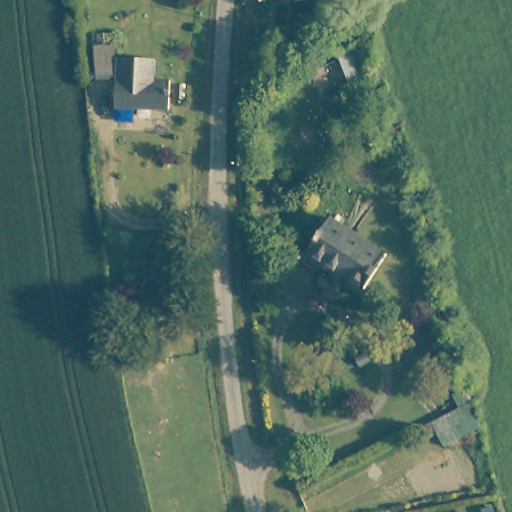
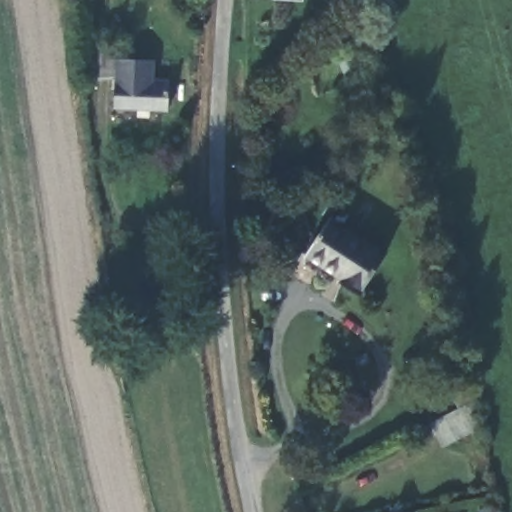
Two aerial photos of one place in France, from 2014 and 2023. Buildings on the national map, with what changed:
unchanged [(369,81),(350,89),(334,50),(354,43),(369,81)]
unchanged [(153,59),(154,79),(167,80),(168,109),(113,106),(114,72),(95,75),(93,45),(112,45),(114,56),(153,59)]
unchanged [(389,254),(365,293),(307,257),(333,216),(389,254)]
unchanged [(475,411),(420,439),(414,428),(471,400),(475,411)]

